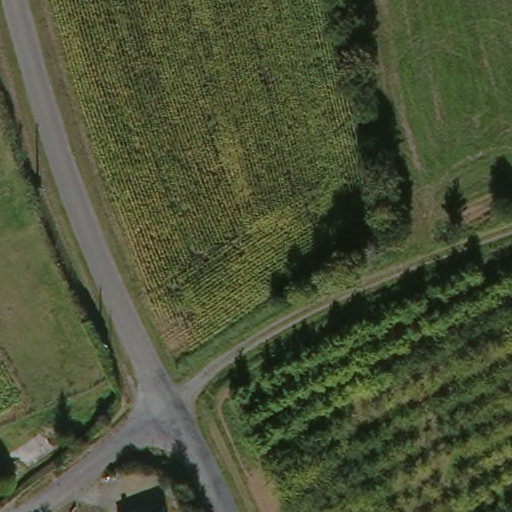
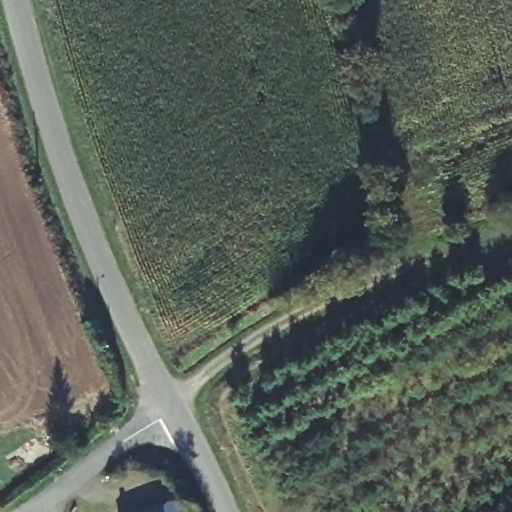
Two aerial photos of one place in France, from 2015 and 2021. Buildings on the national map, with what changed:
unchanged [(160,503),(163,512),(133,512),(160,503)]

